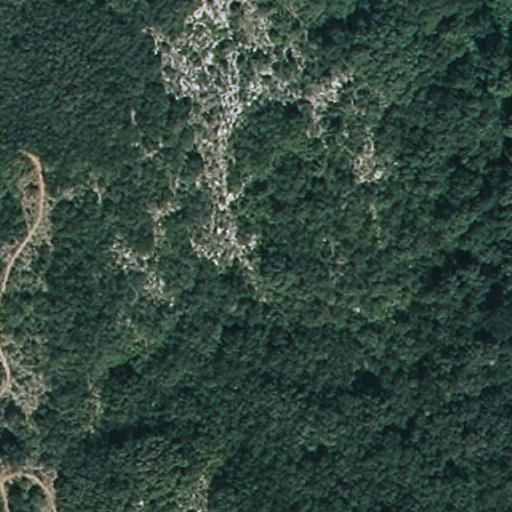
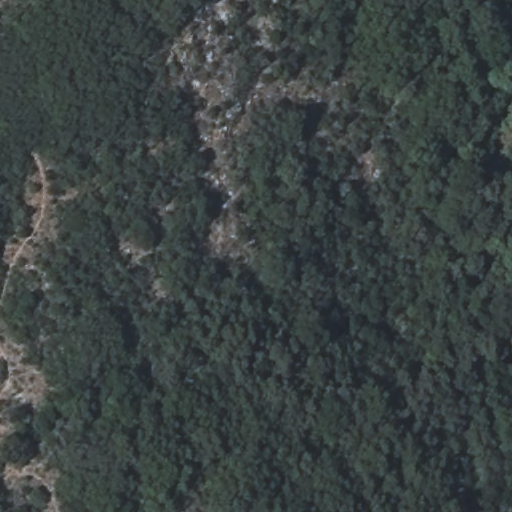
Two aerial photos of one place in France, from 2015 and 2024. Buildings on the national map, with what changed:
[]

